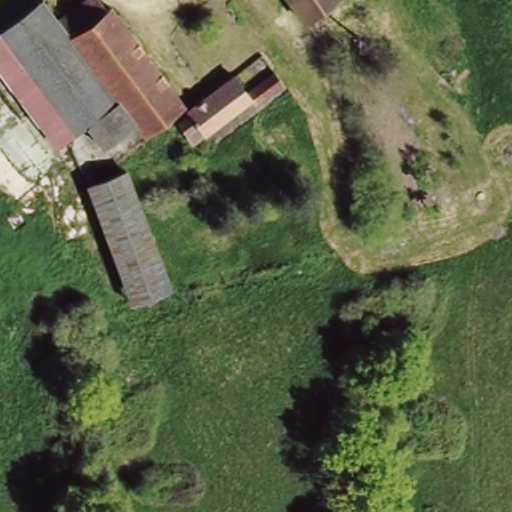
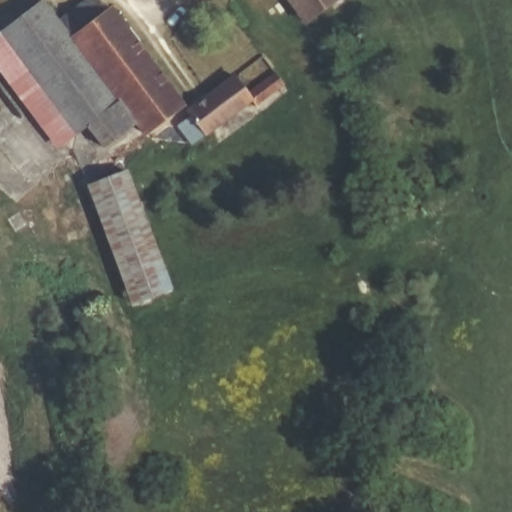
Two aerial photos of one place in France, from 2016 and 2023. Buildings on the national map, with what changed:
unchanged [(2,19),(29,0),(51,0),(60,12),(123,98),(81,126),(2,19)]
unchanged [(95,0),(102,11),(110,5),(180,98),(142,123),(123,98),(60,12),(78,0),(95,0)]
unchanged [(290,0),(339,0),(306,23),(290,0)]
unchanged [(58,143),(0,63),(0,20),(2,19),(81,126),(58,143)]
unchanged [(231,75),(242,90),(266,72),(277,86),(252,105),(248,98),(207,128),(203,123),(197,127),(190,117),(196,113),(190,105),(231,75)]
unchanged [(170,267),(175,278),(137,295),(130,277),(87,182),(125,165),(170,267)]

